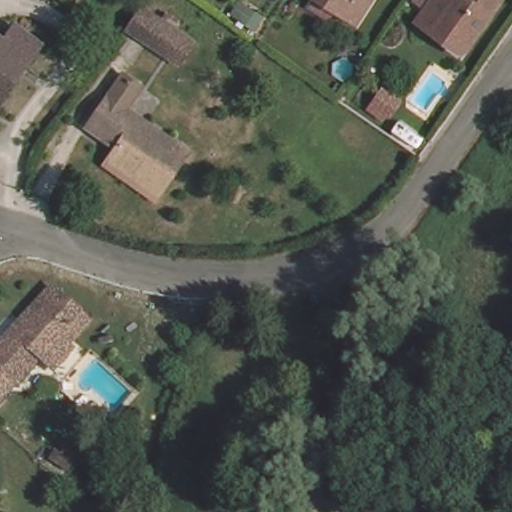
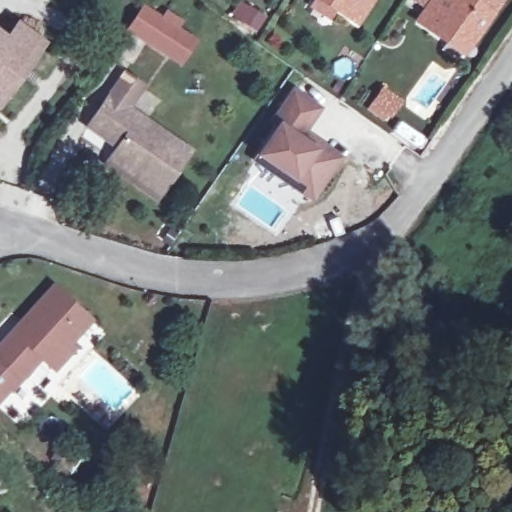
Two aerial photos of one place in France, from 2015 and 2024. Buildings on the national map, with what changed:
unchanged [(313,6),(317,0),(371,0),(357,22),(335,8),(330,17),(313,6)]
unchanged [(448,47),(419,28),(429,13),(415,4),(418,0),(454,0),(455,1),(456,0),(502,0),(502,1),(491,17),(470,50),(462,45),(457,53),(448,47)]
unchanged [(140,8),(157,20),(162,13),(175,23),(171,30),(189,41),(175,62),(125,29),(140,8)]
unchanged [(10,27),(35,45),(0,91),(0,41),(10,27)]
unchanged [(105,169),(110,161),(117,152),(88,131),(124,79),(142,91),(126,113),(188,156),(160,196),(155,203),(105,169)]
new [(290,185),(254,160),(278,125),(272,121),(292,91),(318,109),(302,132),(314,140),(339,158),(335,163),(319,187),(310,199),(290,185)]
unchanged [(405,104),(395,119),(377,107),(386,92),(405,104)]
unchanged [(90,320),(70,342),(76,347),(55,371),(49,365),(40,357),(15,384),(13,382),(0,396),(0,346),(53,287),(90,320)]

